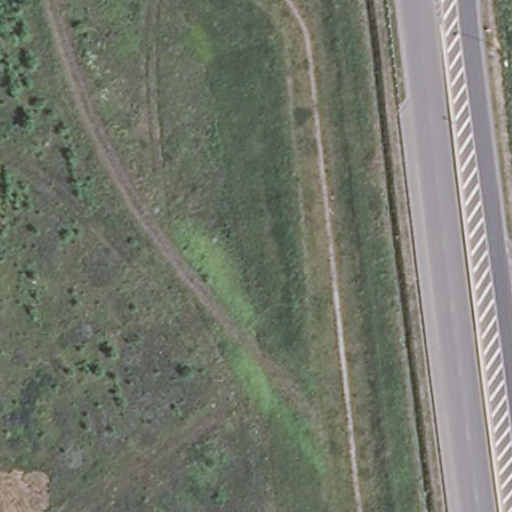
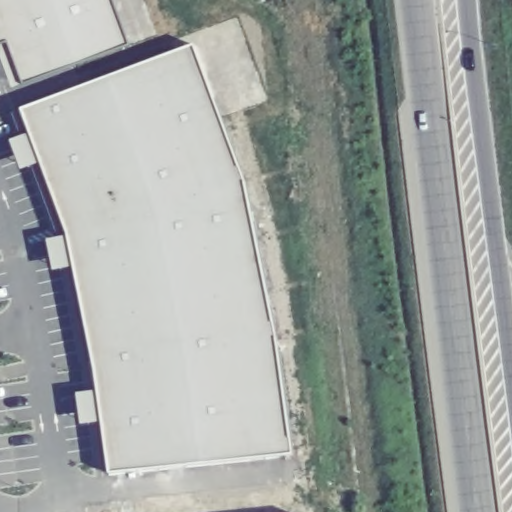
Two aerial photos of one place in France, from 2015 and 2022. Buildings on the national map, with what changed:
new [(109,0),(125,44),(10,86),(0,61),(0,0),(109,0)]
new [(195,45),(247,185),(279,340),(292,454),(110,474),(102,423),(82,428),(77,394),(99,392),(77,268),(55,272),(48,242),(70,238),(40,163),(22,171),(12,143),(32,134),(24,111),(195,45)]

